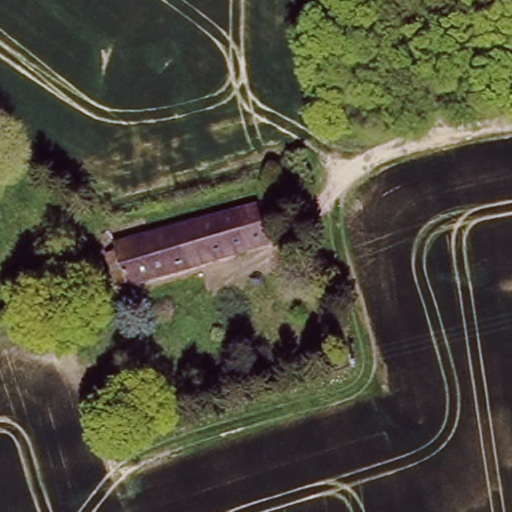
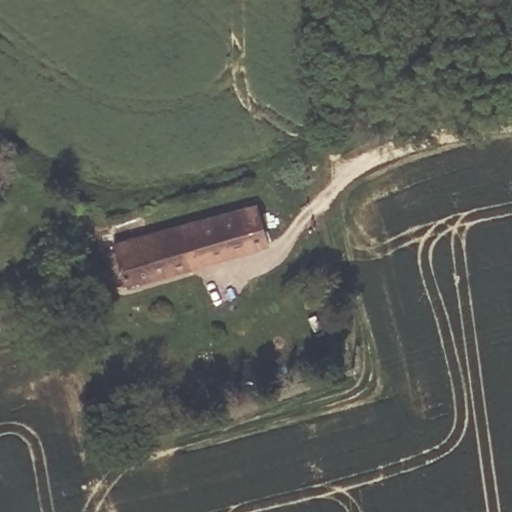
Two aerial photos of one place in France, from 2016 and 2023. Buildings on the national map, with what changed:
unchanged [(117,244),(257,201),(268,240),(130,285),(129,281),(117,286),(109,260),(106,253),(118,249),(117,244)]

